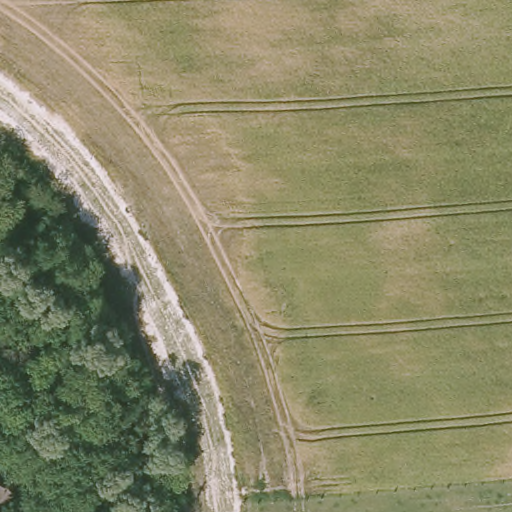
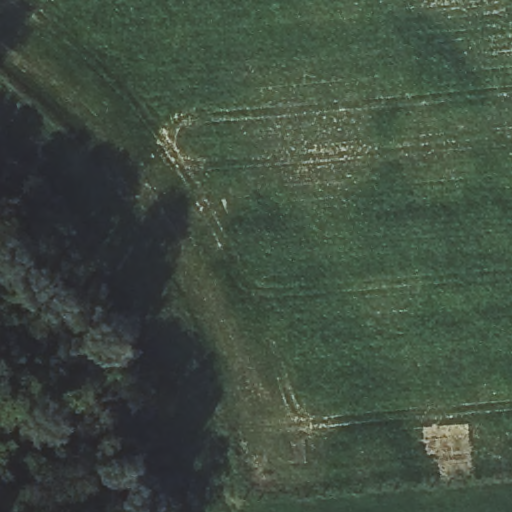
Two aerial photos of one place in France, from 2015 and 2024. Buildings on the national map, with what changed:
unchanged [(2,512),(1,512),(0,511),(0,476),(19,487),(2,512)]

